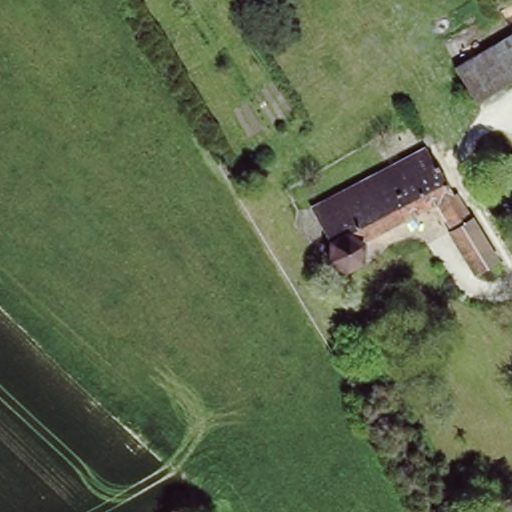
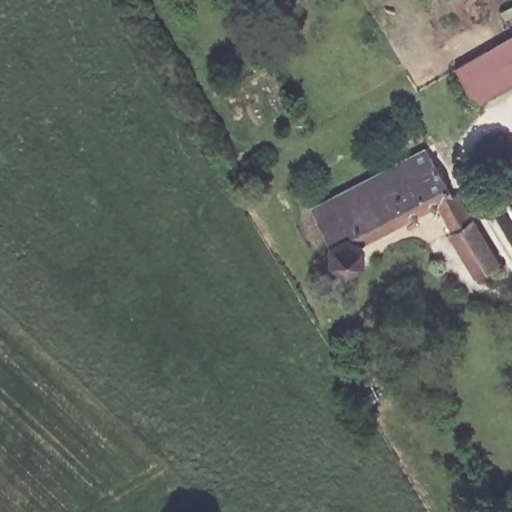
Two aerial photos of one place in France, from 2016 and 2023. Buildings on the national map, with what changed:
unchanged [(455,70),(512,37),(512,83),(475,104),(455,70)]
unchanged [(427,137),(454,186),(458,184),(499,253),(475,266),(451,223),(458,219),(451,205),(445,208),(437,195),(363,235),(363,253),(345,261),(330,256),(330,231),(315,199),(427,137)]

